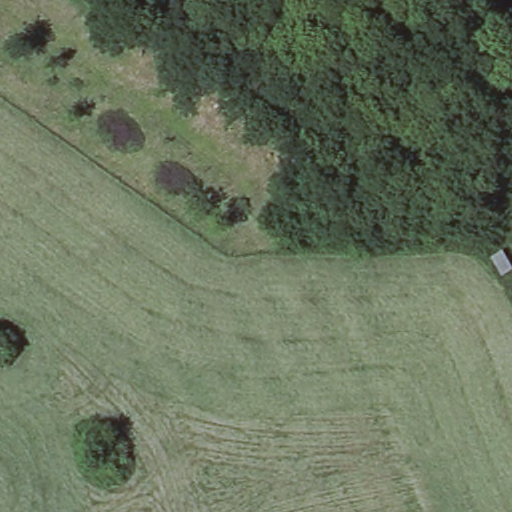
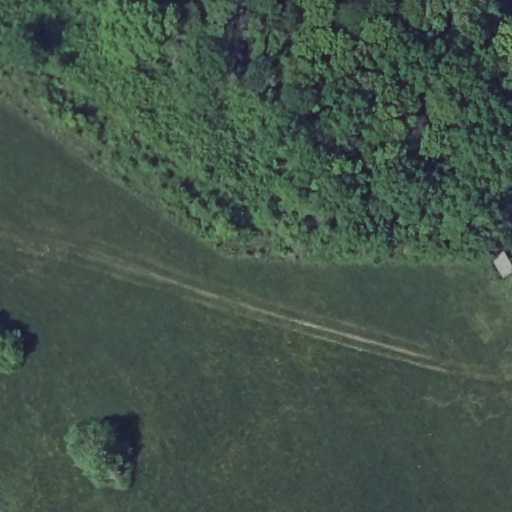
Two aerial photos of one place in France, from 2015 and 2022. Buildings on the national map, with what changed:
unchanged [(484,261),(500,251),(512,268),(512,272),(497,281),(484,261)]

